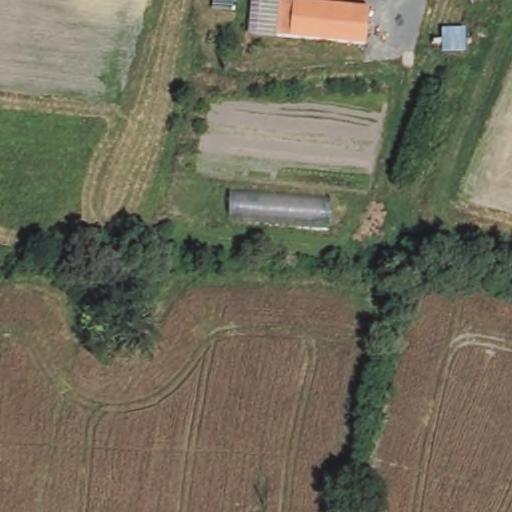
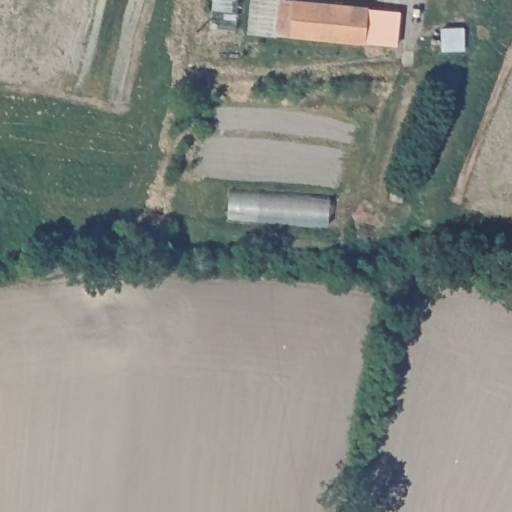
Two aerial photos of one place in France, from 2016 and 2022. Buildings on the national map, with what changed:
unchanged [(288,37),(247,33),(251,0),(292,0),(288,37)]
unchanged [(367,7),(364,44),(288,37),(292,0),(297,0),(367,7)]

